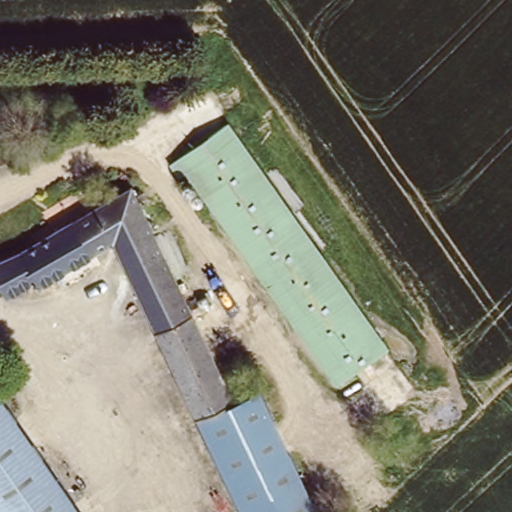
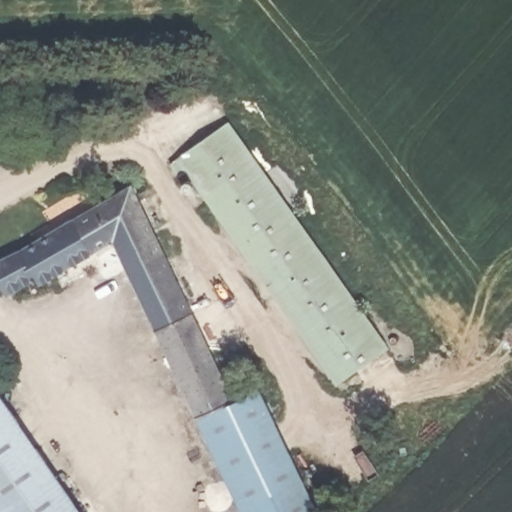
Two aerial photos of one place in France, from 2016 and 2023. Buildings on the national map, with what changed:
unchanged [(386,350),(338,390),(184,157),(233,124),(386,350)]
unchanged [(130,170),(156,225),(192,302),(243,408),(204,422),(116,234),(50,277),(46,271),(17,291),(0,265),(0,258),(130,170)]
unchanged [(204,422),(243,408),(238,397),(263,388),(319,512),(245,512),(204,422)]
unchanged [(77,512),(0,512),(0,398),(77,512)]

